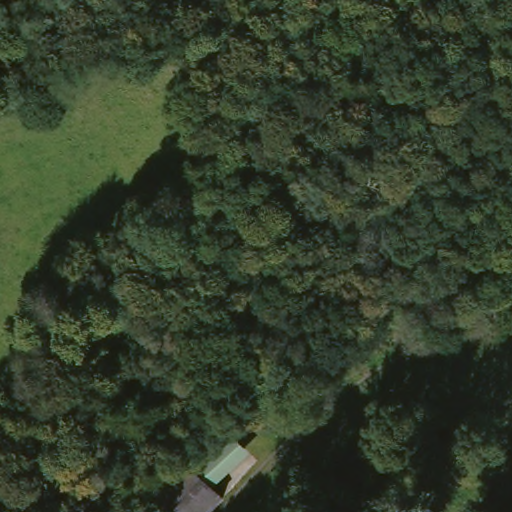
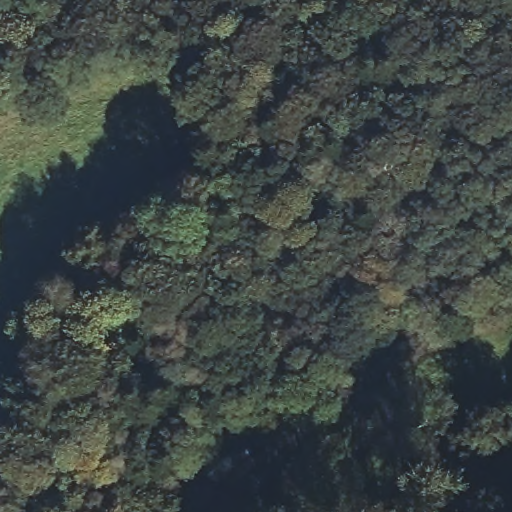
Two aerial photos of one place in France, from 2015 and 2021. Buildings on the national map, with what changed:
unchanged [(232,449),(194,484),(213,504),(205,512),(129,512),(214,430),(232,449)]

